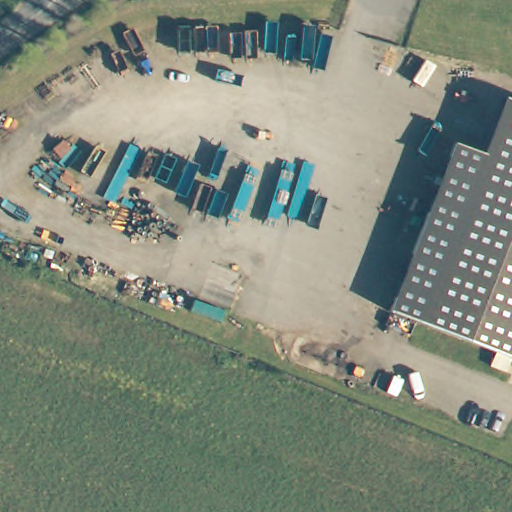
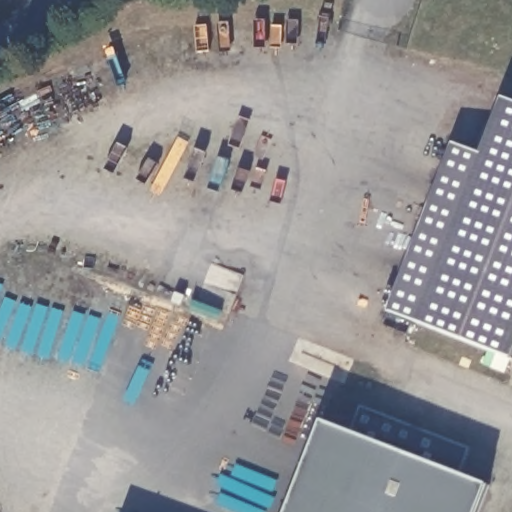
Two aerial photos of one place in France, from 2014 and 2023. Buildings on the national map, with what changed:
unchanged [(493,368),(499,352),(392,309),(461,145),(484,154),(509,102),(512,103),(512,365),(508,374),(493,368)]
new [(353,433),(363,407),(469,447),(458,475),(488,486),(478,512),(291,512),(326,422),(353,433)]

